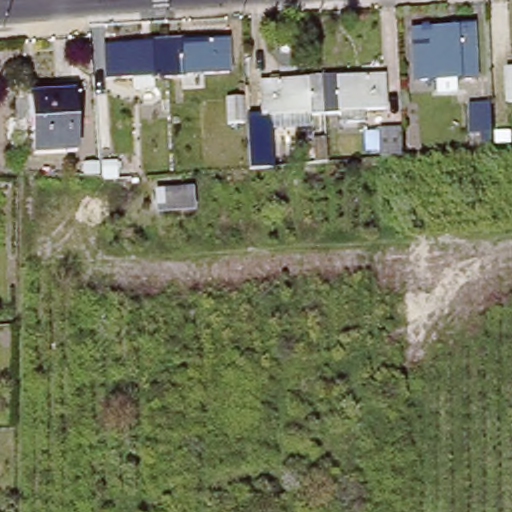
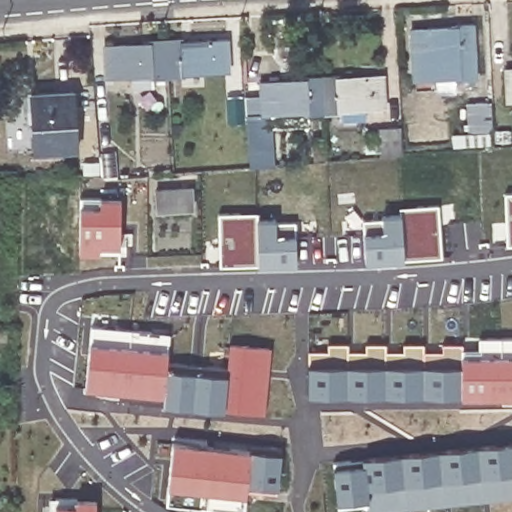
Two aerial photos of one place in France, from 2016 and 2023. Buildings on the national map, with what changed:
unchanged [(457,25),(457,23),(473,22),(475,77),(460,78),(460,75),(415,77),(413,28),(457,25)]
unchanged [(222,44),(223,75),(177,76),(177,80),(163,80),(162,45),(177,43),(177,46),(222,44)]
unchanged [(145,49),(145,45),(162,45),(163,80),(147,80),(147,79),(103,80),(100,50),(145,49)]
unchanged [(512,105),(509,105),(507,72),(512,72),(512,105)]
unchanged [(384,75),(385,108),(363,109),(364,119),(340,120),(339,112),(322,113),(321,76),(337,75),(337,78),(384,75)]
unchanged [(305,80),(305,76),(321,76),(322,113),(307,114),(307,111),(270,113),(273,162),(250,164),(247,114),(263,114),(262,82),(305,80)]
unchanged [(73,88),(77,145),(36,147),(32,91),(73,88)]
unchanged [(107,90),(109,118),(97,119),(95,90),(107,90)]
unchanged [(242,101),(243,123),(229,124),(227,101),(242,101)]
unchanged [(489,102),(490,130),(470,132),(469,104),(489,102)]
unchanged [(399,126),(400,154),(386,155),(380,156),(378,126),(399,126)]
unchanged [(342,132),(342,153),(330,154),(329,134),(342,132)]
unchanged [(193,186),(195,205),(160,208),(159,189),(193,186)]
new [(504,194),(512,193),(512,246),(505,246),(504,194)]
new [(78,197),(100,198),(100,207),(119,207),(118,252),(97,252),(77,252),(78,230),(78,197)]
new [(364,262),(361,220),(380,219),(380,216),(400,215),(399,207),(415,205),(437,204),(441,257),(415,259),(402,260),(364,262)]
new [(218,265),(217,214),(239,212),(240,220),(255,220),(275,219),(275,222),(294,221),(295,264),(257,265),(244,265),(218,265)]
new [(82,392),(84,388),(89,325),(150,332),(167,333),(167,343),(165,361),(162,395),(140,393),(124,392),(117,391),(116,396),(82,392)]
new [(402,398),(383,398),(364,398),(345,398),(326,397),(307,398),(307,395),(306,395),(307,351),(327,351),(327,343),(346,343),(346,351),(364,351),(364,343),(384,344),(384,351),(402,352),(402,344),(422,345),(422,351),(441,352),(441,344),(460,345),(460,350),(477,350),(478,338),(512,339),(512,398),(477,398),(460,398),(441,398),(422,398),(402,398)]
new [(226,367),(228,345),(270,349),(264,411),(222,407),(226,367)]
new [(160,407),(162,395),(165,361),(185,363),(195,365),(206,365),(226,367),(222,407),(222,413),(205,412),(192,411),(177,410),(160,407)]
new [(170,442),(172,437),(205,441),(205,446),(212,447),(228,449),(249,451),(243,504),(243,512),(225,512),(164,505),(170,442)]
new [(357,507),(336,510),(332,462),(349,461),(361,460),(379,458),(400,456),(417,455),(438,452),(455,450),(477,448),(494,446),(512,444),(512,499),(500,500),(482,502),(462,505),(444,506),(424,508),(405,510),(391,512),(367,512),(367,506),(366,501),(367,506),(357,507)]
new [(249,451),(249,445),(262,446),(280,448),(275,495),(255,492),(245,491),(246,482),(249,451)]
new [(74,498),(94,500),(94,509),(93,512),(53,512),(54,498),(74,498)]

